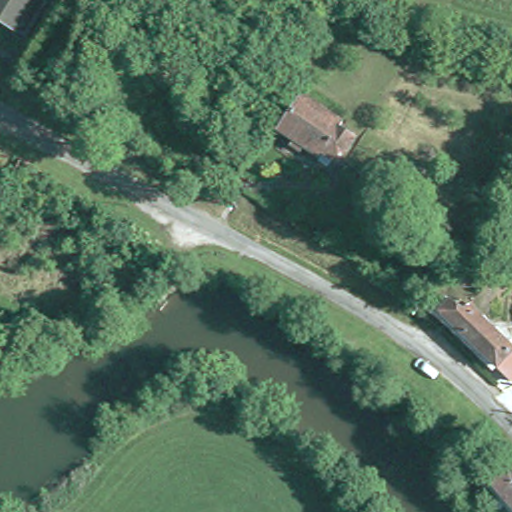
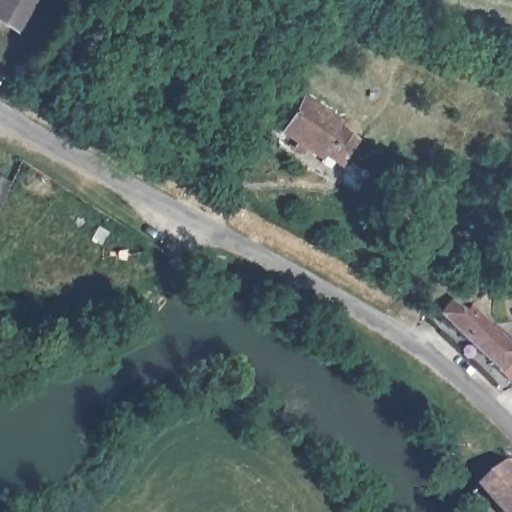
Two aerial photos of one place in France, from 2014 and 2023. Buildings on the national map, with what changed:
unchanged [(0,14),(0,0),(32,0),(16,25),(0,14)]
unchanged [(338,162),(325,153),(322,156),(278,128),(299,95),(357,132),(338,162)]
unchanged [(0,182),(9,186),(0,205),(0,182)]
unchanged [(443,300),(457,312),(464,304),(508,348),(490,366),(432,311),(443,300)]
unchanged [(512,464),(512,502),(493,480),(512,464)]

